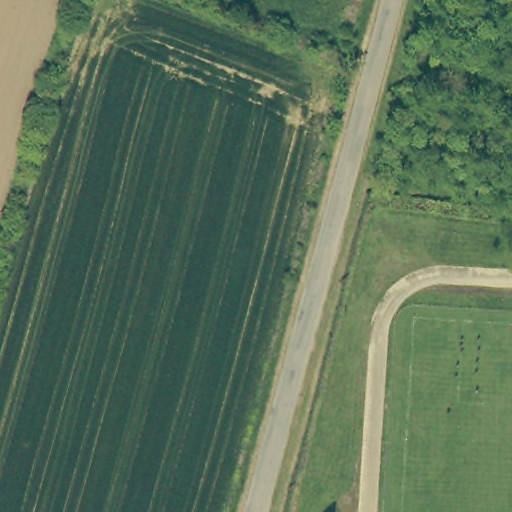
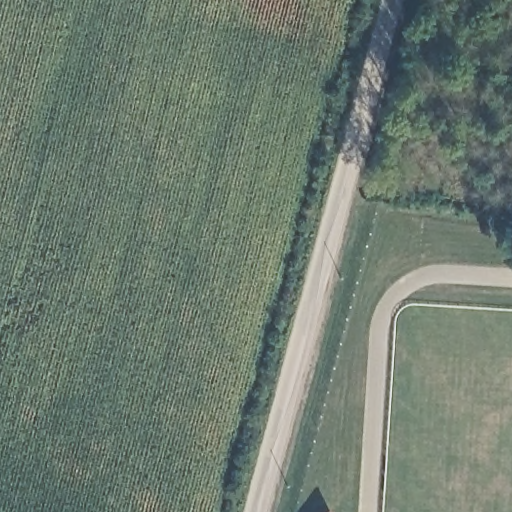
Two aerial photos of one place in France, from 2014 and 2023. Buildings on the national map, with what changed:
unchanged [(329,508),(329,512),(324,512),(329,508)]

